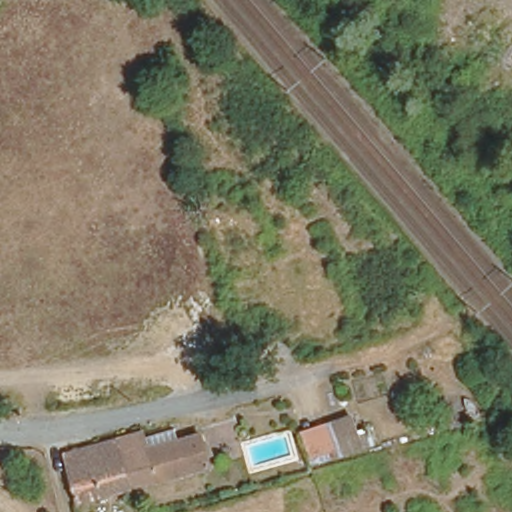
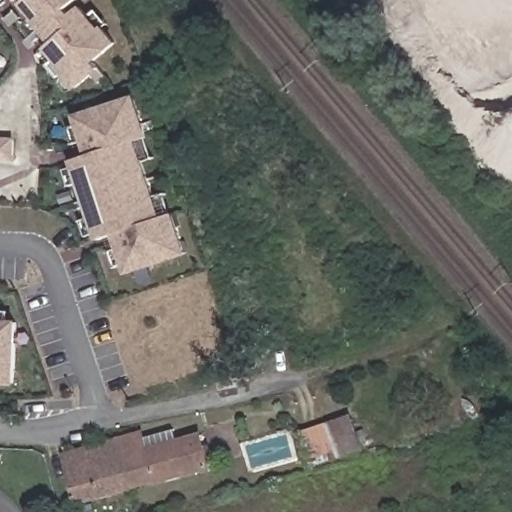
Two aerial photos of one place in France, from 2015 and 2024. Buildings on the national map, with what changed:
new [(72,12),(83,4),(102,28),(104,25),(118,42),(96,62),(101,69),(76,90),(63,75),(66,72),(48,48),(53,45),(48,37),(22,3),(27,0),(80,0),(69,7),(72,12)]
new [(138,141),(163,217),(176,212),(189,255),(127,274),(114,235),(98,240),(71,160),(87,155),(74,114),(137,94),(151,136),(138,141)]
new [(20,319),(17,386),(0,385),(0,319),(20,319)]
unchanged [(352,416),(361,447),(342,453),(339,446),(311,453),(304,429),(352,416)]
unchanged [(205,465),(128,486),(75,501),(61,450),(113,436),(138,429),(140,435),(170,427),(173,439),(196,432),(205,465)]

